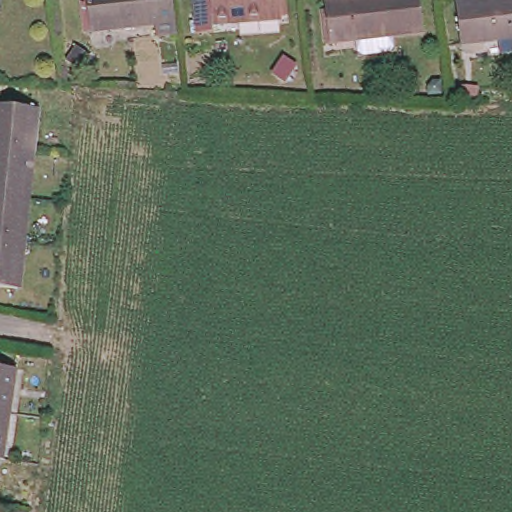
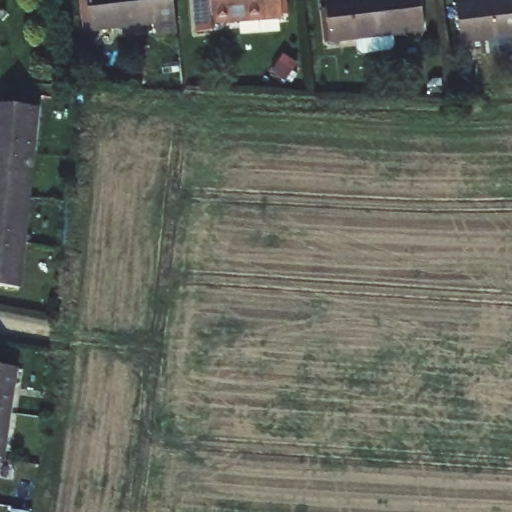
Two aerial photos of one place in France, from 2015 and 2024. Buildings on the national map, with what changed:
unchanged [(154,19),(89,26),(86,0),(173,0),(176,28),(155,31),(154,19)]
unchanged [(290,10),(290,14),(220,19),(221,29),(204,29),(202,0),(294,0),(295,11),(290,10)]
unchanged [(325,11),(324,0),(420,0),(423,33),(329,44),(324,45),(320,11),(325,11)]
unchanged [(465,4),(485,1),(485,0),(512,0),(512,39),(470,44),(465,4)]
unchanged [(17,293),(0,292),(0,110),(36,114),(17,293)]
unchanged [(19,373),(6,463),(0,462),(0,466),(0,371),(19,373)]

